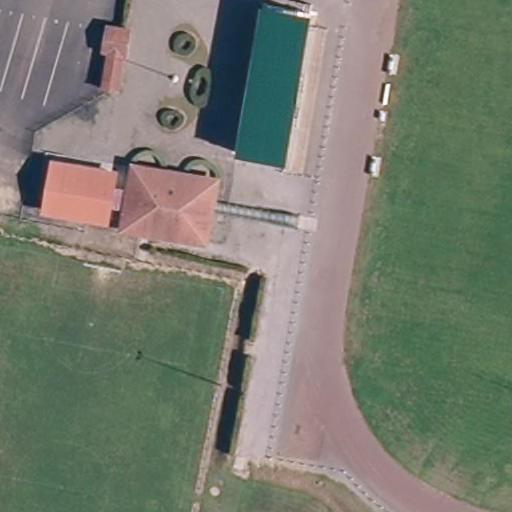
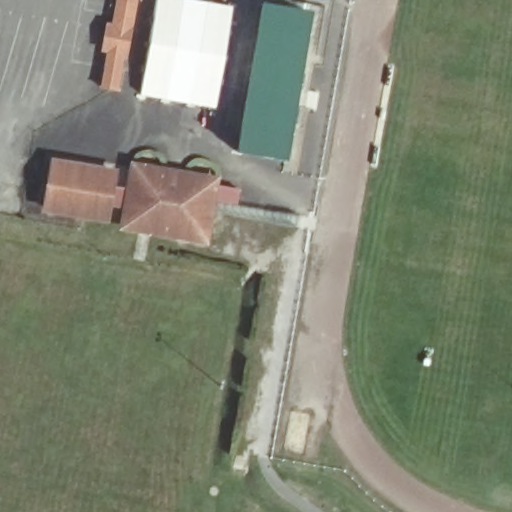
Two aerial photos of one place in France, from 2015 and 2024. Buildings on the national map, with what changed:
new [(108,56),(104,55),(109,25),(113,26),(117,0),(140,0),(129,59),(125,59),(120,92),(103,91),(108,56)]
new [(204,0),(234,5),(226,61),(216,110),(139,96),(155,0),(204,0)]
unchanged [(285,159),(239,149),(269,2),(315,11),(285,159)]
unchanged [(123,226),(128,204),(110,200),(106,217),(91,214),(46,203),(56,157),(99,167),(116,171),(112,188),(130,193),(135,171),(136,164),(220,183),(218,190),(205,245),(123,226)]

